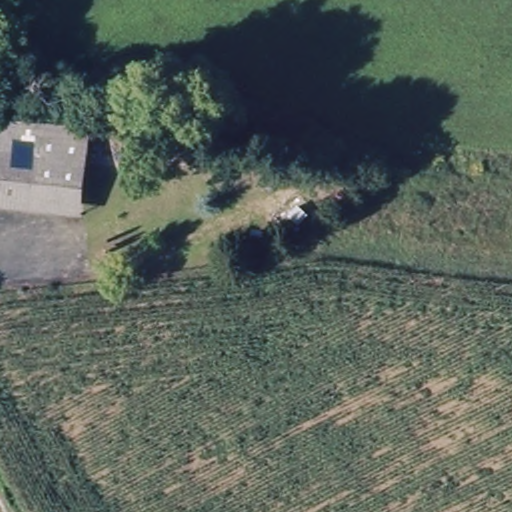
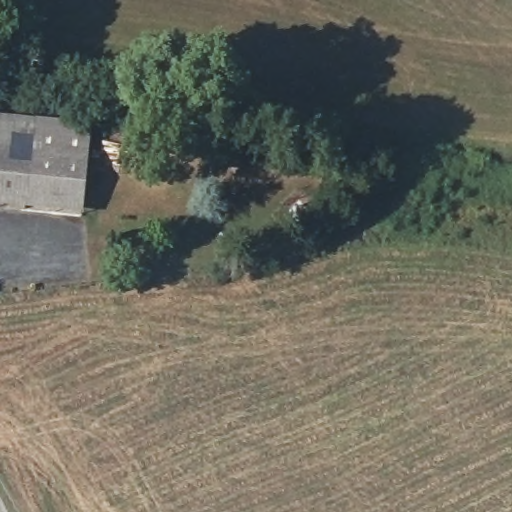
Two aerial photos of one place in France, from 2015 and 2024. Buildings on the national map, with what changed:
unchanged [(79,216),(0,209),(0,122),(87,129),(79,216)]

